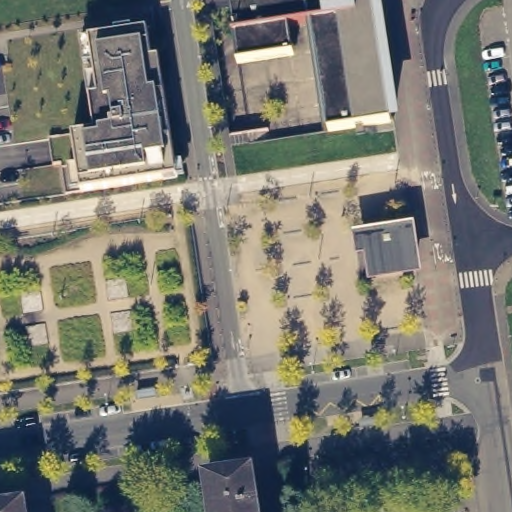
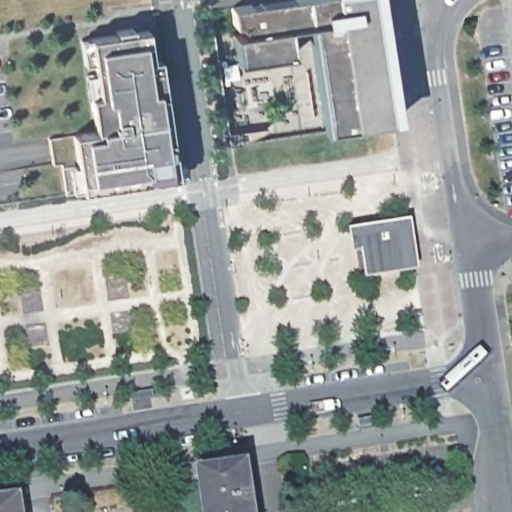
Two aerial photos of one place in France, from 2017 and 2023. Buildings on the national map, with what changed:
unchanged [(367,20),(317,27),(316,19),(295,22),(248,28),(247,20),(240,21),(237,2),(250,0),(364,0),(367,20)]
unchanged [(400,117),(382,120),(376,81),(367,20),(364,0),(382,0),(400,117)]
unchanged [(332,127),(317,27),(367,20),(376,81),(382,120),(332,127)]
unchanged [(239,30),(248,28),(295,22),(296,31),(300,50),(245,57),(242,40),(239,30)]
unchanged [(79,193),(79,191),(72,192),(67,165),(77,164),(72,132),(92,130),(84,74),(92,72),(92,63),(82,64),(79,39),(148,30),(152,57),(159,57),(175,162),(182,161),(185,177),(177,177),(79,193)]
unchanged [(422,271),(369,278),(366,252),(357,254),(354,230),(415,222),(422,271)]
unchanged [(259,512),(213,512),(207,473),(252,467),(259,512)]
unchanged [(0,512),(0,504),(20,501),(22,512),(0,512)]

